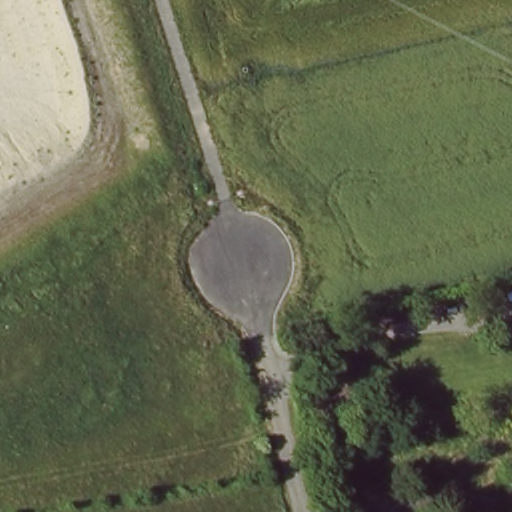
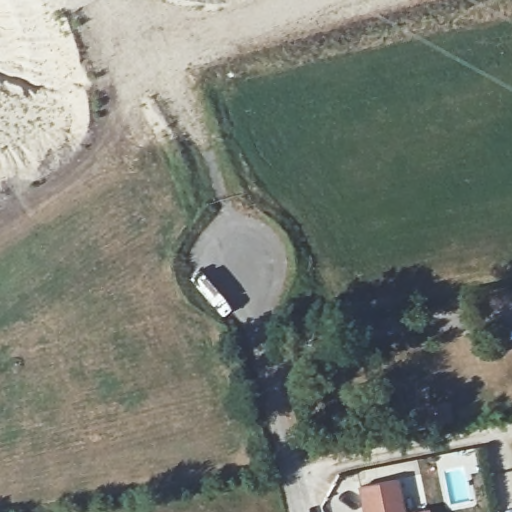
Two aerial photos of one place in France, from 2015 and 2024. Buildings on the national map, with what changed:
new [(357,487),(397,477),(404,512),(362,512),(357,487)]
new [(428,508),(428,512),(404,512),(428,508)]

